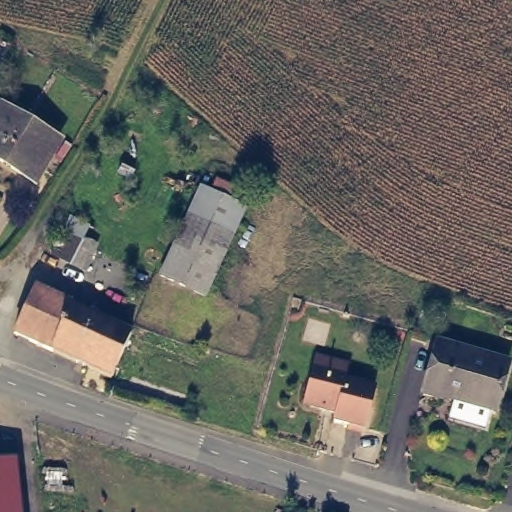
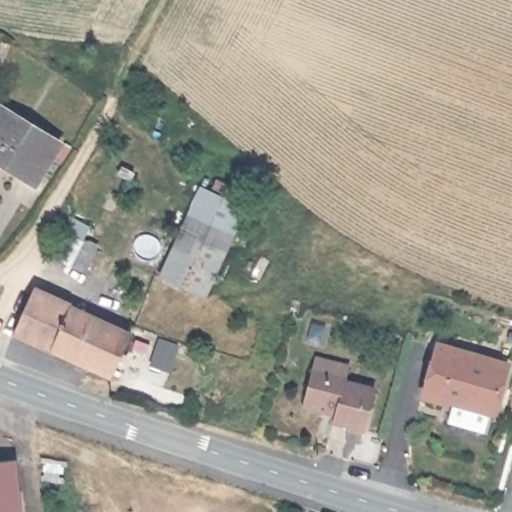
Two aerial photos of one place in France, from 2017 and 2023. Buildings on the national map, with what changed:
unchanged [(55,148),(32,185),(0,166),(0,114),(0,113),(55,148)]
unchanged [(189,238),(205,196),(250,215),(232,256),(189,238)]
unchanged [(72,262),(56,253),(68,230),(84,238),(72,262)]
unchanged [(217,292),(173,273),(189,238),(232,256),(217,292)]
unchanged [(112,372),(17,326),(37,284),(132,329),(112,372)]
unchanged [(493,412),(426,391),(442,341),(509,362),(493,412)]
unchanged [(317,352),(350,361),(345,376),(343,384),(372,392),(372,394),(362,432),(330,424),(332,416),(301,408),(310,376),(312,367),(317,352)]
unchanged [(21,512),(0,512),(0,463),(14,461),(21,512)]

